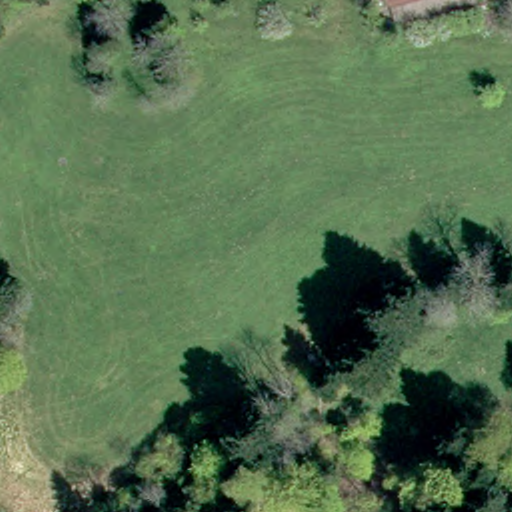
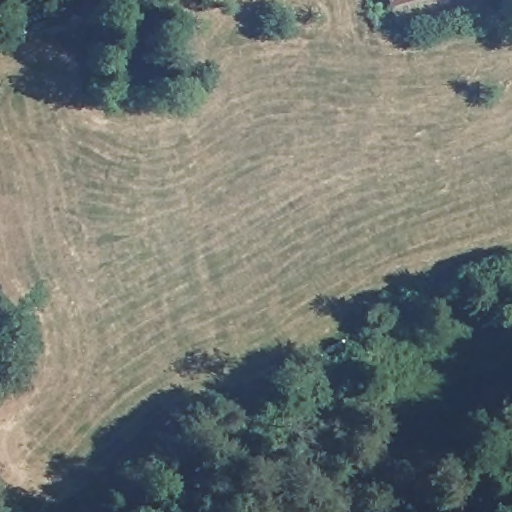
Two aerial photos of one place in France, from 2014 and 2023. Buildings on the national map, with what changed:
unchanged [(393,14),(388,0),(435,0),(393,14)]

